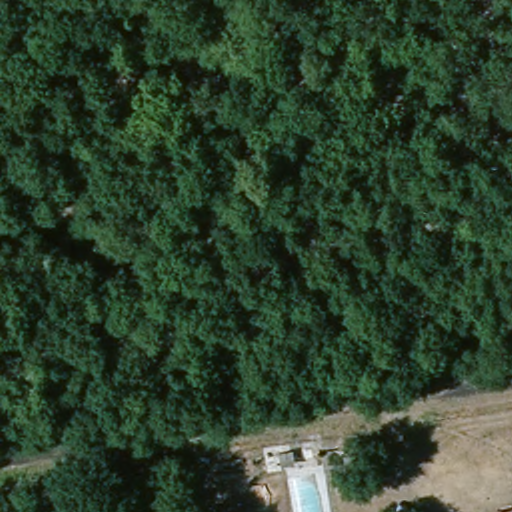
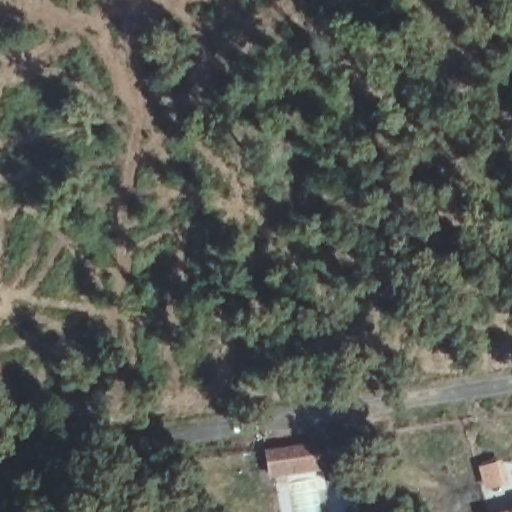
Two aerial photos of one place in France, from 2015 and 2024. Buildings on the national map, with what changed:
new [(320,442),(325,470),(268,479),(264,450),(320,442)]
unchanged [(507,512),(512,511),(512,512),(507,512)]

